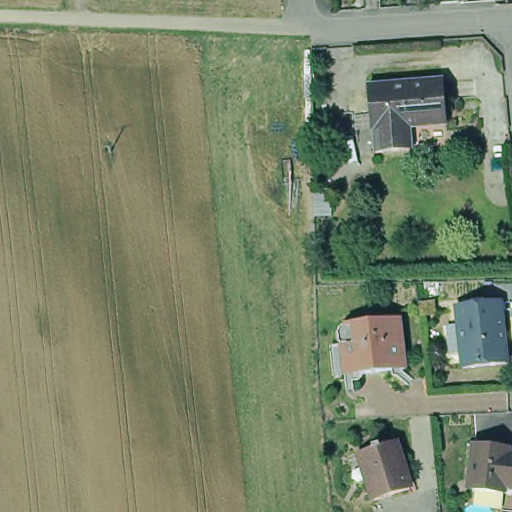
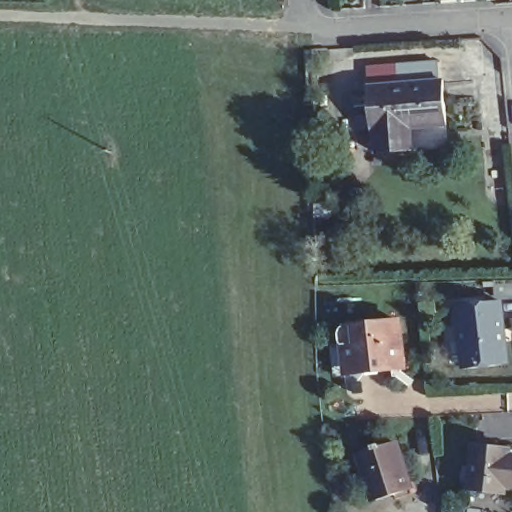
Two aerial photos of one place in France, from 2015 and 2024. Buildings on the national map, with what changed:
unchanged [(370,146),(368,125),(365,125),(362,80),(437,74),(440,119),(392,122),(394,145),(370,146)]
unchanged [(442,141),(394,145),(392,122),(440,119),(442,141)]
unchanged [(496,296),(503,361),(456,366),(447,296),(496,296)]
unchanged [(396,309),(404,365),(339,373),(332,318),(396,309)]
unchanged [(377,438),(378,440),(393,436),(408,482),(373,493),(358,447),(372,442),(371,440),(377,438)]
unchanged [(479,438),(511,441),(510,449),(512,449),(512,478),(508,477),(507,485),(491,482),(491,484),(475,482),(479,438)]

